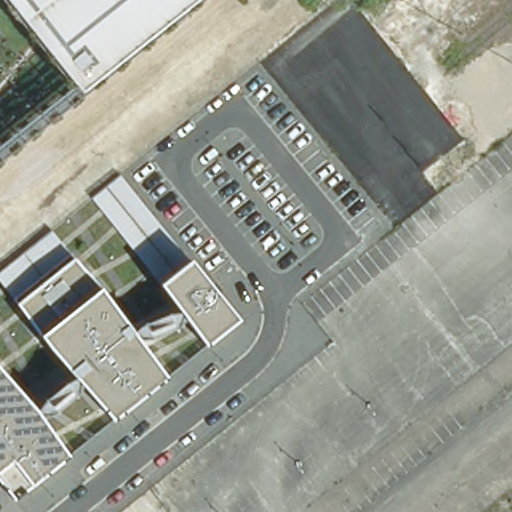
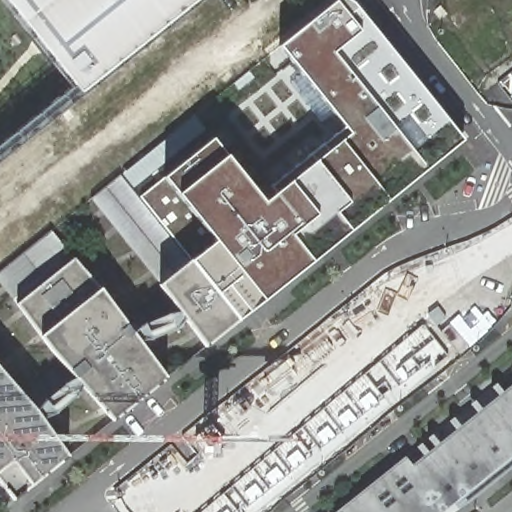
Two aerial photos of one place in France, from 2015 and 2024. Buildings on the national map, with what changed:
unchanged [(90,97),(13,0),(212,0),(95,92),(90,97)]
new [(248,202),(341,134),(273,46),(333,0),(345,0),(457,139),(240,320),(182,249),(197,235),(154,178),(202,139),(248,202)]
unchanged [(240,320),(207,347),(161,285),(95,197),(121,176),(182,249),(240,320)]
unchanged [(42,336),(18,302),(0,278),(0,273),(52,233),(76,260),(102,291),(168,377),(114,421),(42,336)]
unchanged [(39,411),(70,455),(12,501),(0,485),(0,368),(39,411)]
new [(512,396),(419,470),(414,464),(512,386),(512,396)]
new [(414,464),(419,470),(512,396),(512,450),(453,497),(460,507),(450,512),(334,512),(406,454),(414,464)]
new [(512,465),(460,507),(453,497),(512,450),(512,465)]

